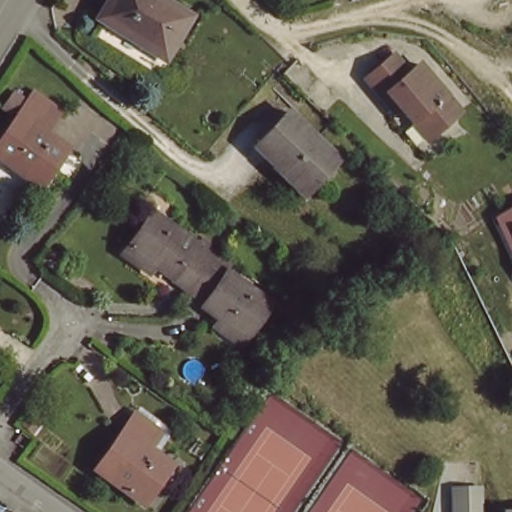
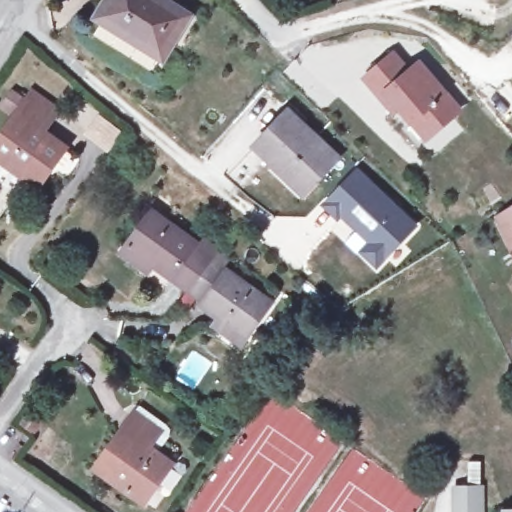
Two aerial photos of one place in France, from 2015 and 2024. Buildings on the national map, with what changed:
unchanged [(96,21),(108,0),(148,0),(185,21),(161,60),(96,21)]
unchanged [(379,107),(361,88),(390,61),(406,80),(416,71),(456,118),(425,146),(403,121),(397,126),(379,107)]
unchanged [(40,136),(63,155),(35,193),(0,166),(0,137),(24,103),(50,124),(40,136)]
unchanged [(337,164),(304,199),(255,153),(289,118),(337,164)]
new [(357,165),(420,223),(376,270),(343,240),(348,234),(346,232),(349,229),(321,204),(357,165)]
unchanged [(493,214),(512,205),(512,255),(493,214)]
unchanged [(125,242),(145,216),(183,245),(178,251),(200,267),(183,288),(125,242)]
unchanged [(251,305),(233,331),(190,299),(192,296),(183,288),(200,267),(251,305)]
unchanged [(160,435),(149,452),(171,468),(145,505),(97,469),(116,440),(133,415),(160,435)]
unchanged [(481,490),(481,512),(456,512),(456,490),(481,490)]

